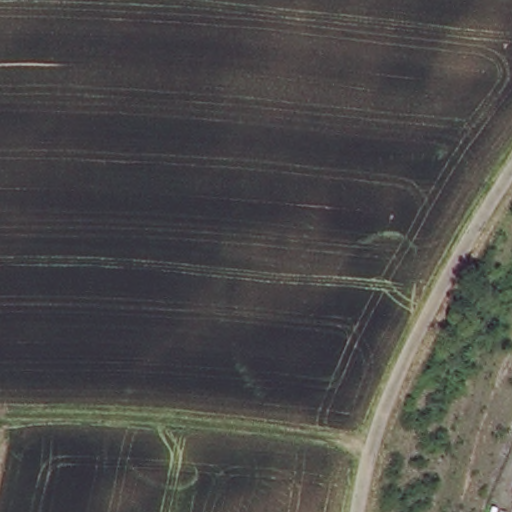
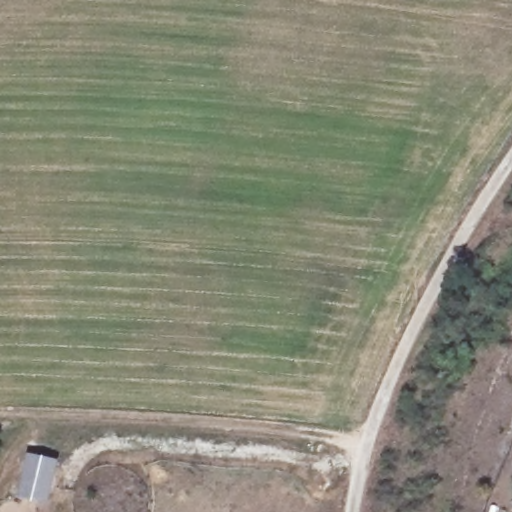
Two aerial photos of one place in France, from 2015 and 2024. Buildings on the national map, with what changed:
new [(49,506),(18,498),(29,453),(59,461),(49,506)]

